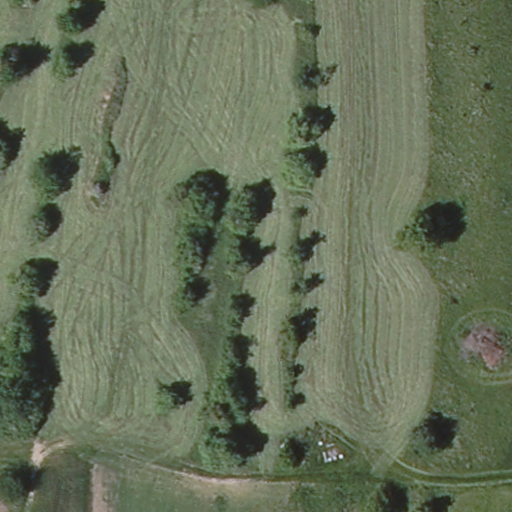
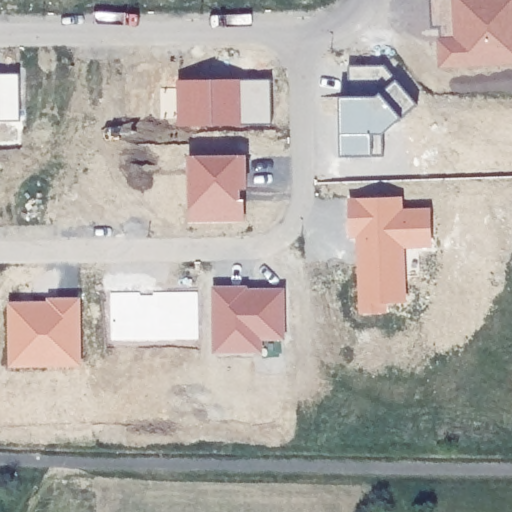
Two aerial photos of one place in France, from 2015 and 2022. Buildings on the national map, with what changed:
new [(439,27),(431,27),(430,0),(512,0),(512,68),(439,69),(439,27)]
new [(385,67),(415,107),(385,135),(372,134),(372,155),(340,155),(339,98),(347,98),(347,69),(385,67)]
new [(19,75),(19,120),(0,121),(0,75),(19,75)]
new [(272,81),(272,124),(179,123),(177,81),(272,81)]
new [(247,157),(245,191),(240,191),(240,200),(245,201),(247,221),(188,220),(189,156),(247,157)]
new [(402,200),(404,209),(430,209),(432,249),(406,250),(405,303),(389,303),(389,312),(361,314),(357,240),(347,239),(349,200),(402,200)]
new [(285,288),(284,343),(264,345),(262,355),(214,354),(214,289),(285,288)]
new [(198,293),(200,340),(110,341),(111,293),(198,293)]
new [(48,303),(47,297),(81,298),(81,368),(11,368),(9,304),(48,303)]

